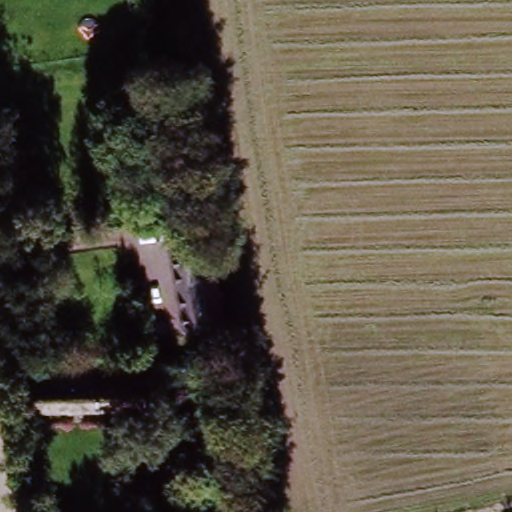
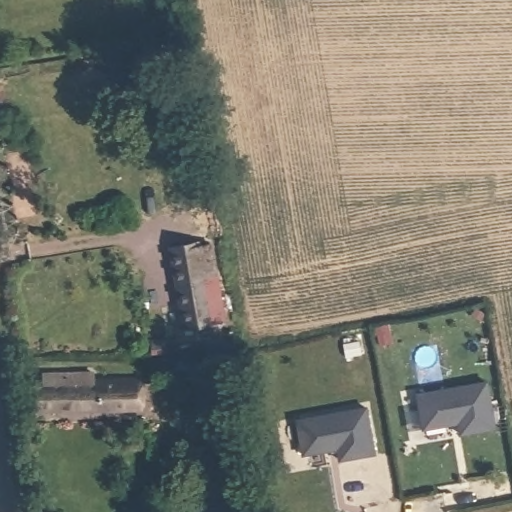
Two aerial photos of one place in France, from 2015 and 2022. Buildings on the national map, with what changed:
unchanged [(195,246),(209,244),(221,323),(180,329),(169,246),(194,242),(195,246)]
unchanged [(242,354),(242,380),(216,382),(215,354),(242,354)]
unchanged [(45,410),(40,410),(40,384),(47,383),(48,372),(95,371),(97,382),(144,381),(146,395),(145,409),(61,410),(45,410)]
new [(490,382),(497,429),(463,435),(461,423),(426,429),(420,394),(490,382)]
new [(369,407),(377,453),(342,459),(340,448),(305,454),(300,419),(369,407)]

